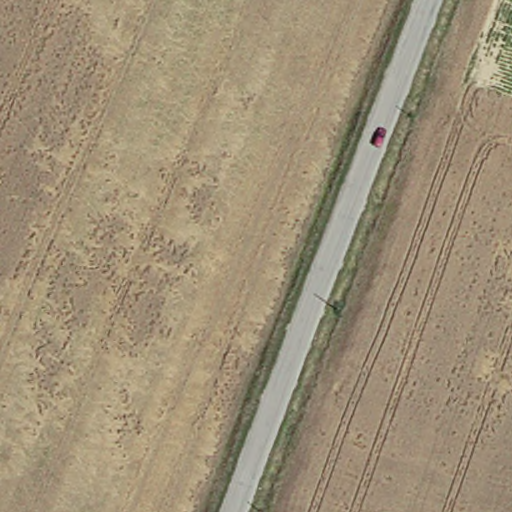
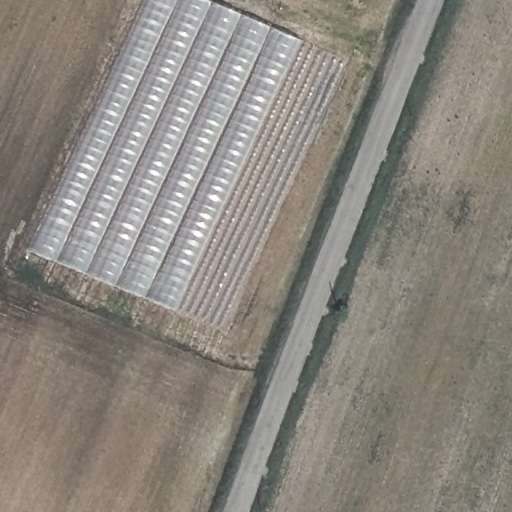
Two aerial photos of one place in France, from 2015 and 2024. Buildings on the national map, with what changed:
new [(172,312),(28,253),(142,0),(200,0),(297,41),(172,312)]
demolished [(499,93),(512,51),(512,97),(499,93)]

